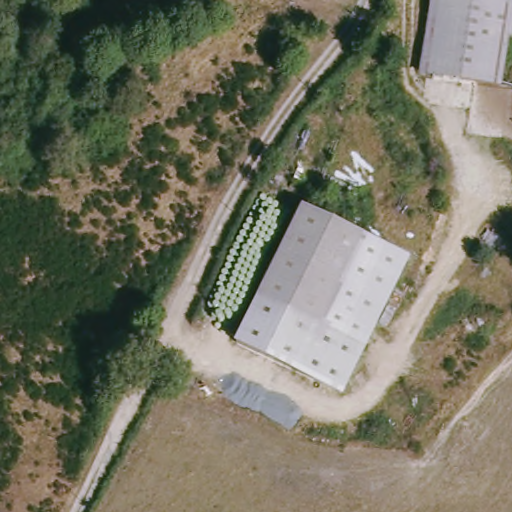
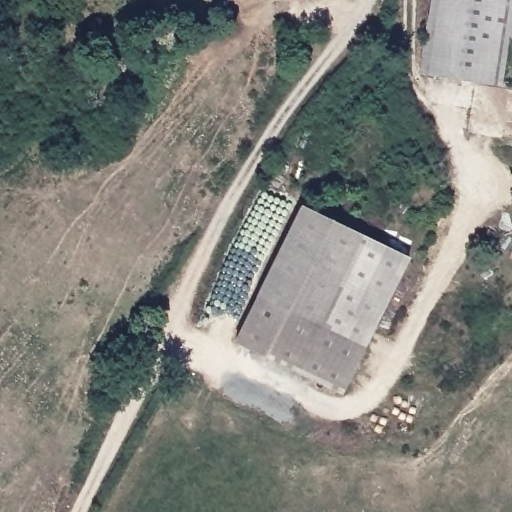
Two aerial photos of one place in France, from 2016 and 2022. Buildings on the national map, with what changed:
unchanged [(343,0),(315,6),(313,0),(343,0)]
unchanged [(510,30),(501,79),(420,67),(431,0),(512,0),(512,30),(510,30)]
unchanged [(361,229),(320,319),(261,291),(304,202),(361,229)]
unchanged [(320,319),(361,229),(408,254),(341,393),(236,342),(261,291),(320,319)]

